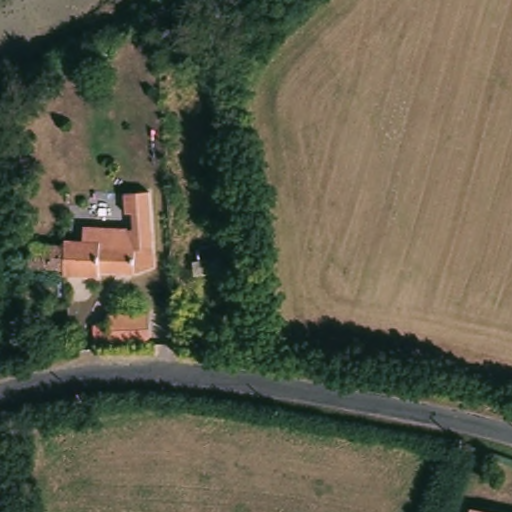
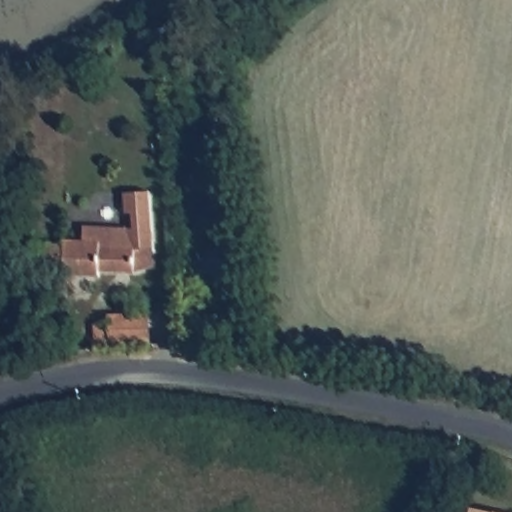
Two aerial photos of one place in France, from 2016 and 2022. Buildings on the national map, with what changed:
unchanged [(34,241),(67,245),(67,241),(85,241),(85,231),(119,232),(119,238),(125,237),(132,226),(131,212),(125,212),(124,192),(149,191),(153,266),(134,273),(102,272),(101,277),(67,275),(67,272),(32,268),(34,241)]
unchanged [(466,511),(473,512),(465,512),(466,511)]

